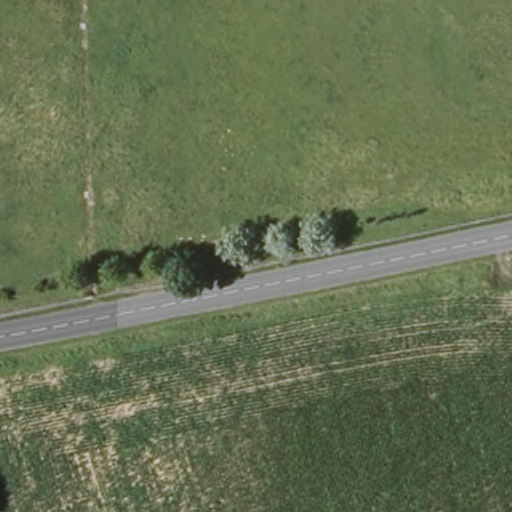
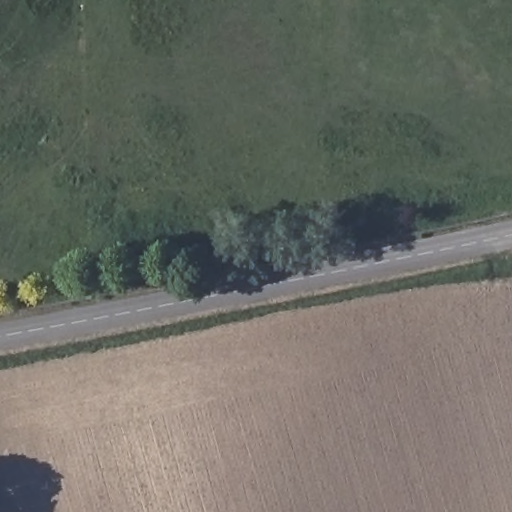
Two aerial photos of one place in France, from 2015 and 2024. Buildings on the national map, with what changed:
[]

